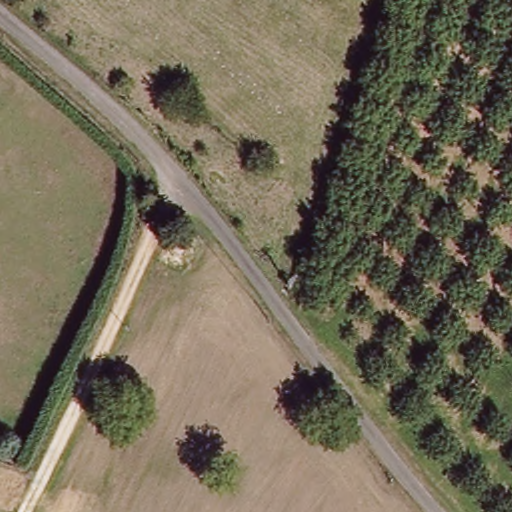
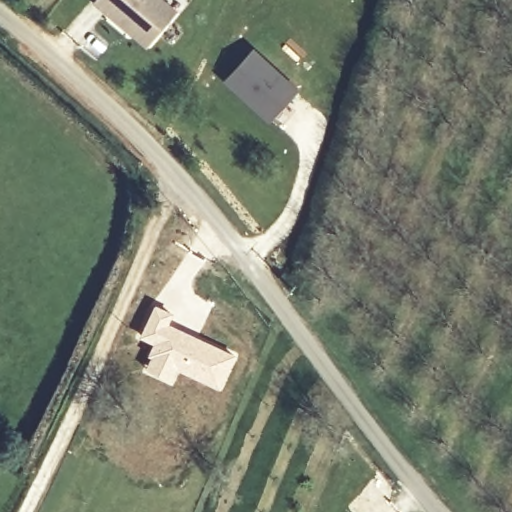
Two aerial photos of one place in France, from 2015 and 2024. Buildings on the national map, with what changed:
new [(178,10),(148,47),(94,3),(96,0),(166,0),(178,10)]
new [(253,47),(298,90),(267,123),(221,81),(253,47)]
new [(154,303),(173,313),(168,322),(238,355),(220,393),(178,373),(172,386),(141,372),(153,344),(138,337),(154,303)]

